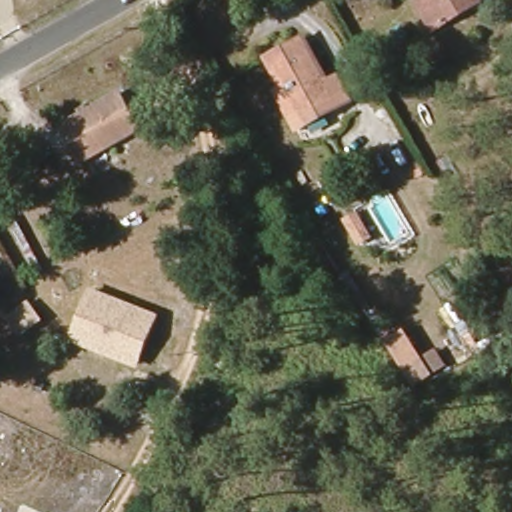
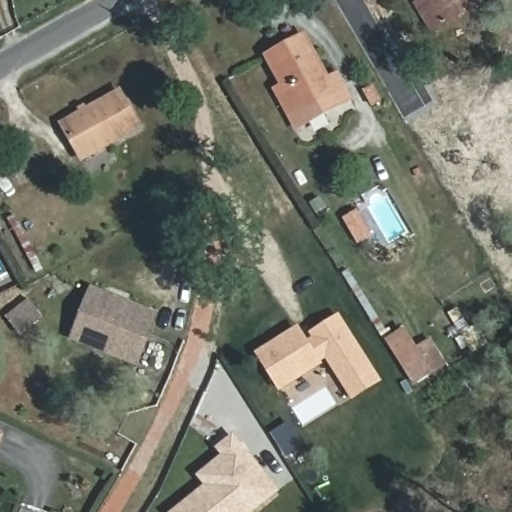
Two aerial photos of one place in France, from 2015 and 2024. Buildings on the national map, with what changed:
unchanged [(487,4),(429,35),(414,4),(419,0),(484,0),(487,4)]
unchanged [(160,27),(197,6),(211,28),(202,34),(204,41),(177,57),(160,27)]
unchanged [(352,100),(340,107),(302,131),(267,59),(299,39),(329,88),(341,81),(352,100)]
unchanged [(138,125),(85,159),(68,127),(120,95),(138,125)]
new [(373,237),(358,246),(342,218),(357,209),(373,237)]
unchanged [(159,313),(138,367),(70,342),(91,286),(159,313)]
unchanged [(19,337),(4,317),(29,298),(44,318),(19,337)]
new [(382,382),(352,401),(325,360),(322,363),(324,365),(279,393),(254,353),(299,326),(308,340),(312,337),(309,333),(339,314),(382,382)]
unchanged [(436,347),(448,366),(414,388),(384,340),(405,329),(422,355),(436,347)]
new [(0,445),(0,431),(5,434),(0,445)]
new [(171,512),(204,486),(196,476),(221,456),(215,448),(234,434),(280,491),(254,512),(171,512)]

